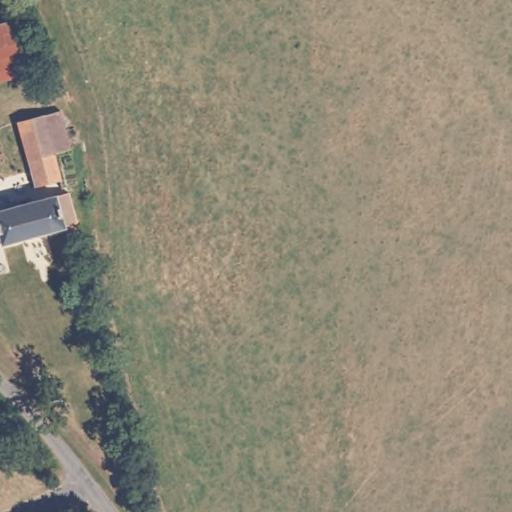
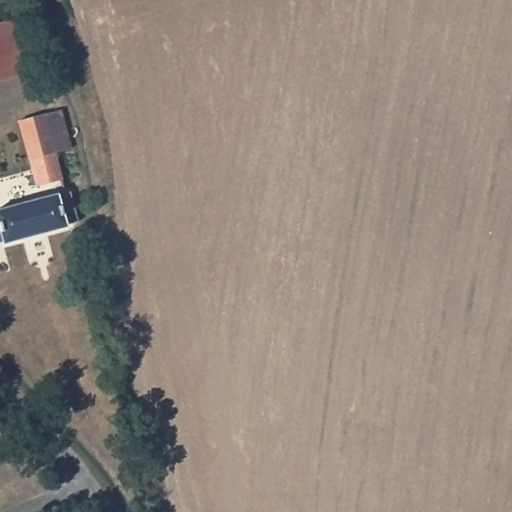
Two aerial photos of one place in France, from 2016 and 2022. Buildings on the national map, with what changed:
unchanged [(0,27),(26,20),(40,74),(0,83),(0,27)]
unchanged [(17,119),(41,114),(57,110),(66,149),(51,153),(59,182),(34,188),(17,119)]
unchanged [(0,209),(66,193),(76,222),(0,240),(0,209)]

